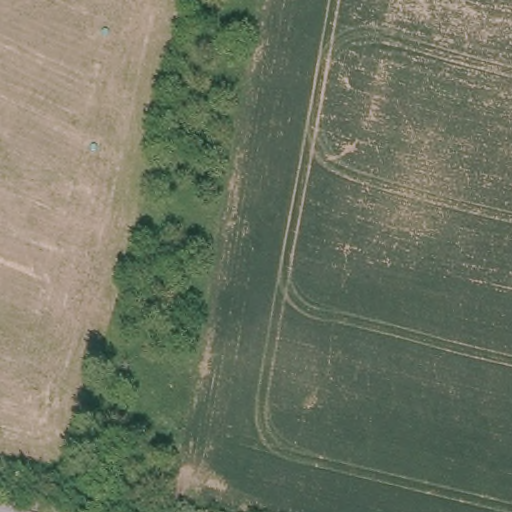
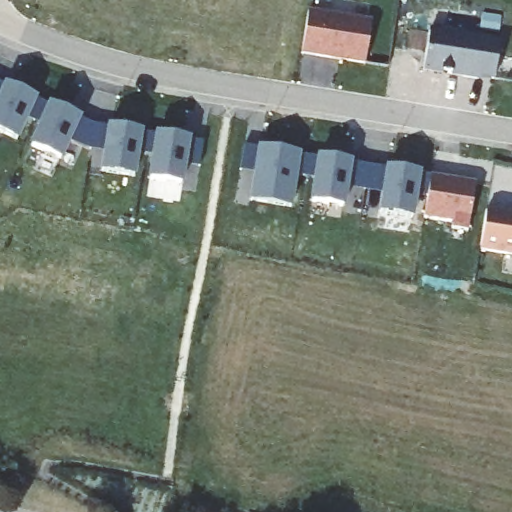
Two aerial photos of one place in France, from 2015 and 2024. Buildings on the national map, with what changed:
new [(370,19),(363,61),(300,51),(307,9),(370,19)]
new [(445,30),(445,29),(485,36),(485,37),(499,39),(493,77),(478,74),(477,77),(462,74),(462,73),(422,67),(428,28),(445,30)]
new [(2,87),(4,82),(38,98),(37,102),(47,107),(37,126),(27,122),(18,143),(0,135),(0,86),(2,87)]
new [(112,160),(101,158),(102,151),(70,142),(62,161),(28,146),(47,104),(106,126),(143,132),(136,177),(110,173),(112,160)]
new [(183,186),(147,180),(153,134),(202,142),(197,167),(186,165),(183,186)]
new [(292,209),(248,202),(252,172),(240,170),(244,146),(300,155),(292,209)]
new [(426,200),(417,199),(413,219),(378,215),(382,195),(347,191),(345,209),(309,204),(312,181),(297,180),(300,155),(430,174),(426,200)]
new [(475,181),(465,229),(450,227),(452,221),(423,216),(430,174),(475,181)]
new [(512,253),(479,248),(485,208),(512,212),(512,253)]

